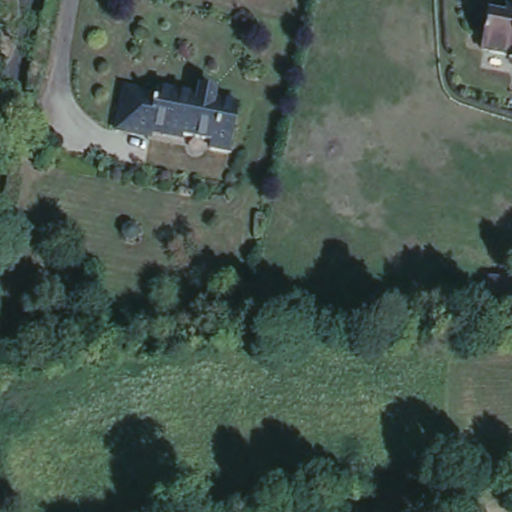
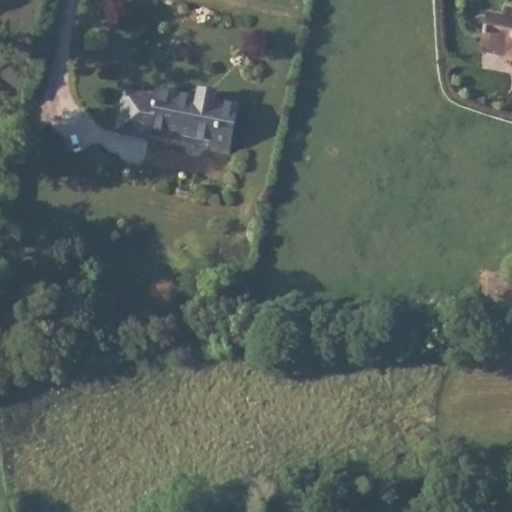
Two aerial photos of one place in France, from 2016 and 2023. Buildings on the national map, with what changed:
unchanged [(502,20),(503,13),(512,15),(512,62),(509,61),(510,54),(479,47),(484,18),(502,20)]
unchanged [(227,147),(208,142),(210,133),(179,127),(146,120),(151,102),(117,95),(120,80),(153,88),(154,83),(196,91),(197,82),(215,86),(212,95),(236,100),(227,147)]
unchanged [(177,135),(145,127),(145,130),(110,123),(117,95),(151,102),(146,120),(179,127),(177,135)]
unchanged [(512,314),(481,313),(482,277),(512,278),(512,314)]

